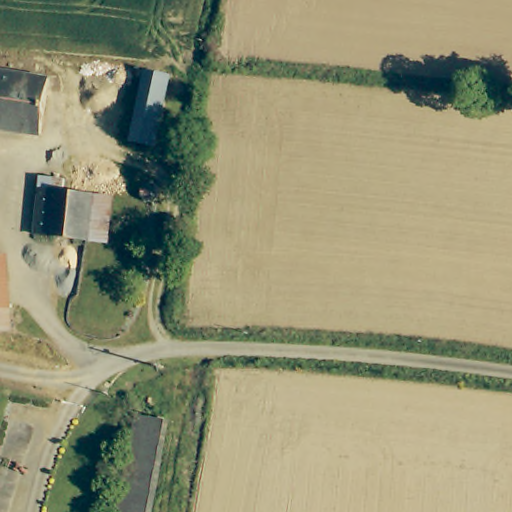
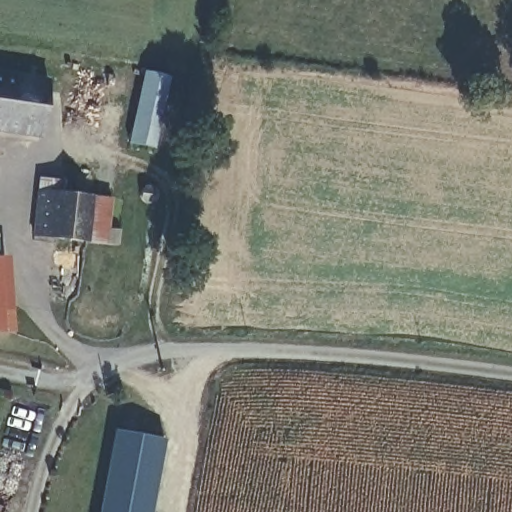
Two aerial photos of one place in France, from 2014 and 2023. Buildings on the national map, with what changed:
unchanged [(36,135),(0,129),(0,71),(45,77),(36,135)]
unchanged [(170,76),(156,145),(131,140),(147,71),(170,76)]
unchanged [(65,179),(64,190),(113,196),(107,242),(35,233),(41,175),(65,179)]
new [(98,512),(113,430),(164,438),(151,512),(98,512)]

